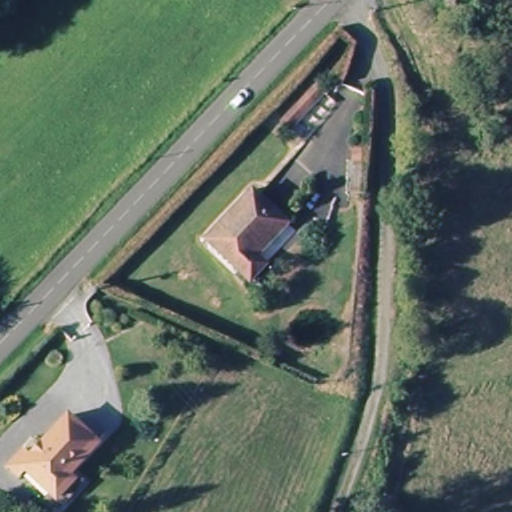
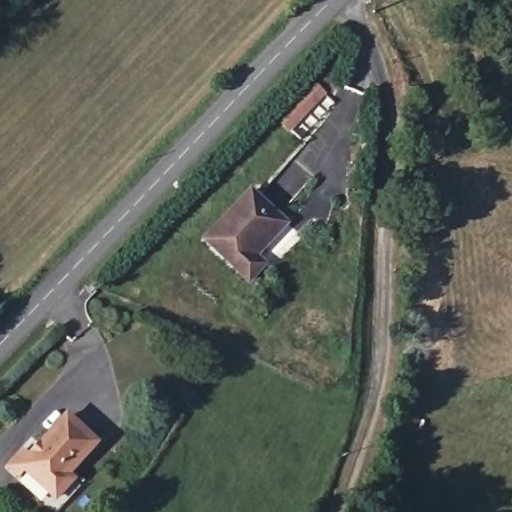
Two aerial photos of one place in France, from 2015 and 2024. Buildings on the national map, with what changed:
unchanged [(316,92),(325,102),(291,136),(282,126),(316,92)]
unchanged [(251,197),(285,231),(254,261),(262,270),(247,285),(205,241),(251,197)]
unchanged [(19,442),(25,448),(62,412),(97,449),(66,478),(72,484),(53,501),(18,463),(12,469),(1,458),(19,442)]

